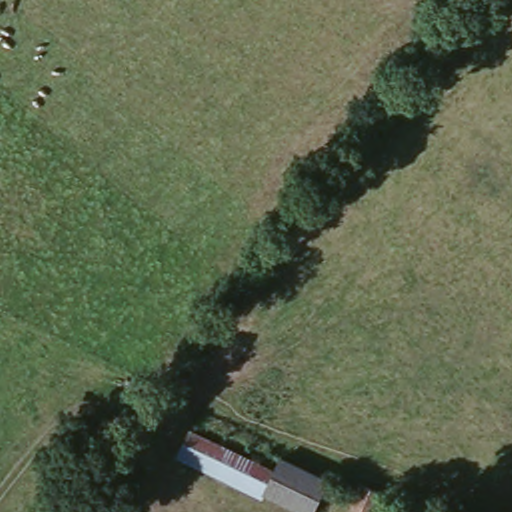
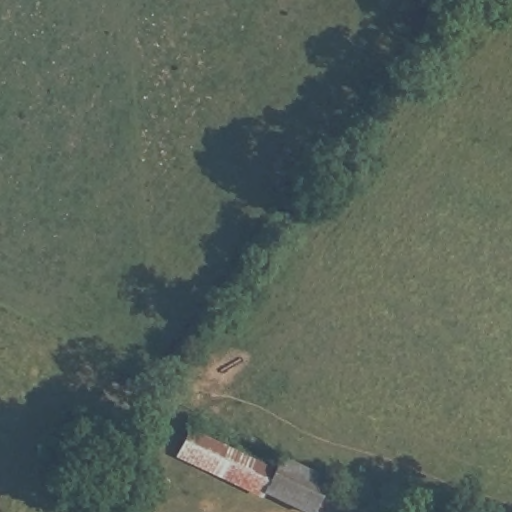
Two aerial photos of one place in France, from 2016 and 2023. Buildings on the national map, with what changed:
unchanged [(169,450),(180,429),(266,475),(255,495),(169,450)]
unchanged [(276,456),(328,486),(314,512),(286,512),(255,495),(266,475),(276,456)]
unchanged [(367,463),(391,479),(376,502),(353,486),(367,463)]

